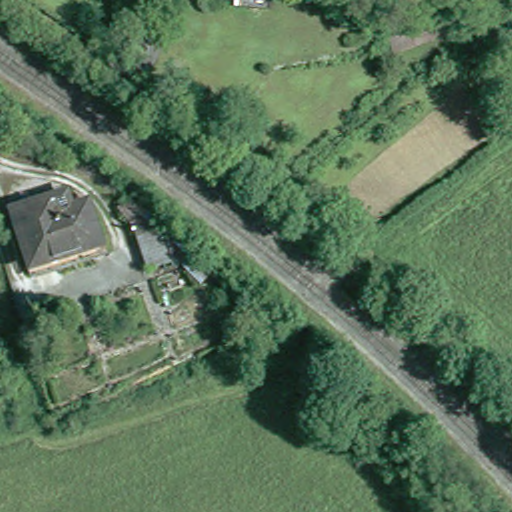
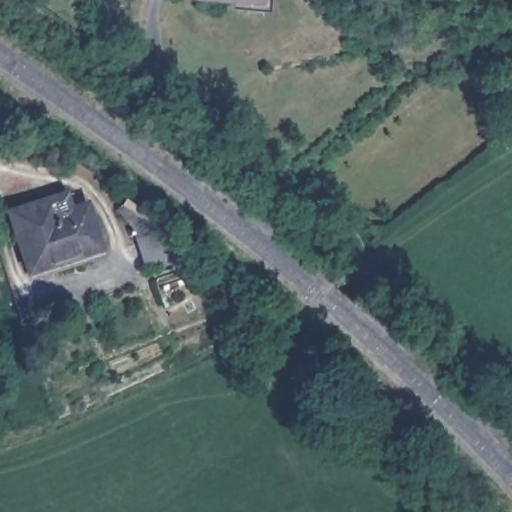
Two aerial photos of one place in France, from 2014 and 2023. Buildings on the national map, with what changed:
unchanged [(55,191),(59,206),(77,201),(85,232),(91,230),(97,250),(22,271),(3,206),(55,191)]
unchanged [(131,191),(161,223),(175,219),(192,259),(149,271),(137,237),(117,207),(131,191)]

